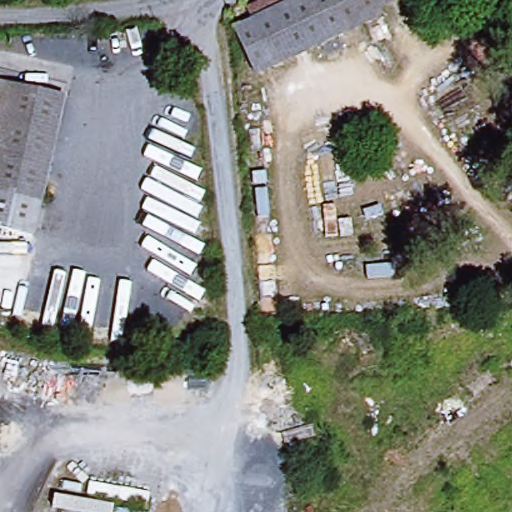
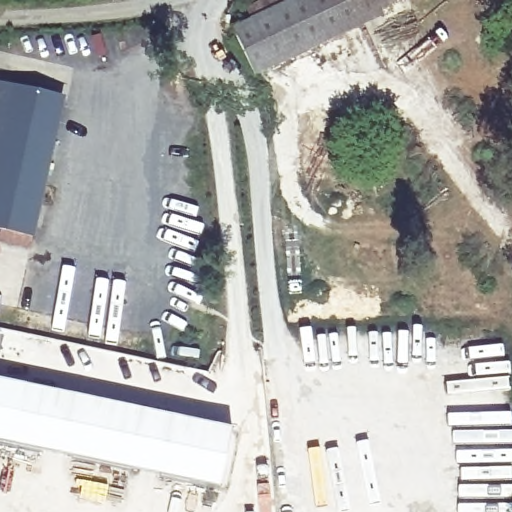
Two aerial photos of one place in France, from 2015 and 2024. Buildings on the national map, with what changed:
unchanged [(378,15),(260,71),(237,25),(290,0),(397,0),(375,10),(378,15)]
unchanged [(0,225),(0,81),(67,96),(37,233),(0,225)]
new [(220,490),(0,444),(0,380),(232,428),(220,490)]

